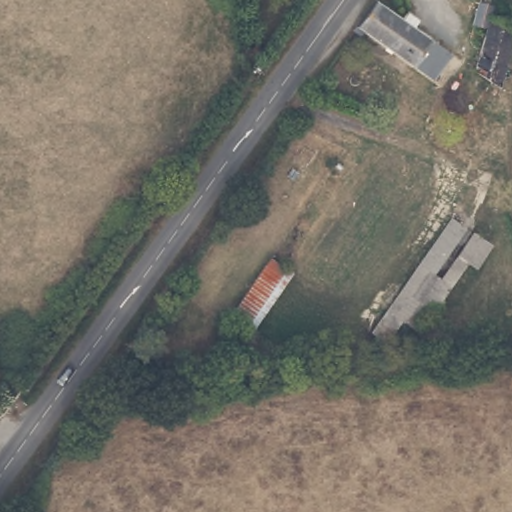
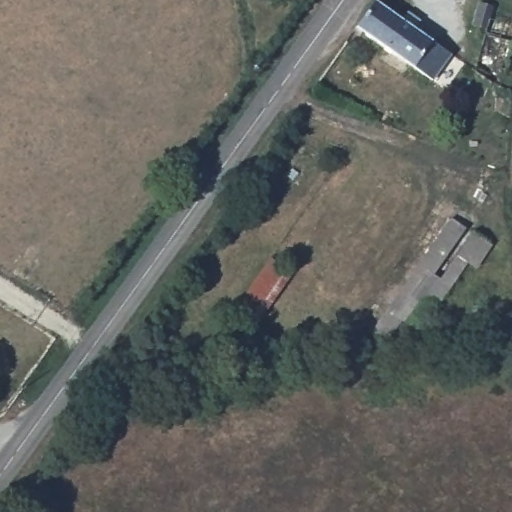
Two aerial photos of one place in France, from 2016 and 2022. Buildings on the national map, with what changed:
unchanged [(419,62),(358,22),(374,0),(388,0),(437,34),(457,49),(439,75),(419,62)]
unchanged [(474,75),(493,10),(512,17),(512,75),(508,87),(474,75)]
unchanged [(456,210),(467,219),(381,332),(369,323),(456,210)]
unchanged [(480,229),(500,244),(481,267),(472,260),(418,327),(407,318),(480,229)]
unchanged [(275,258),(296,274),(252,336),(229,320),(275,258)]

